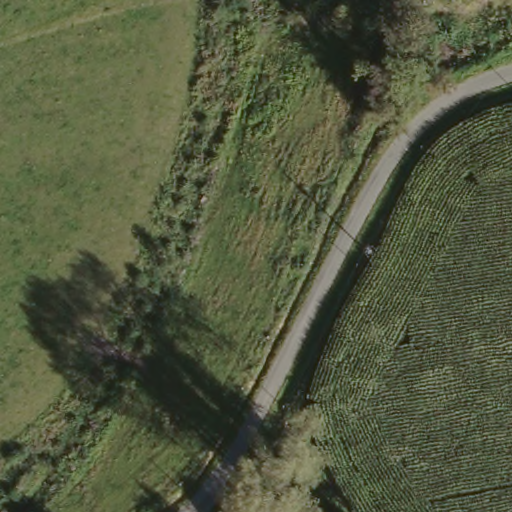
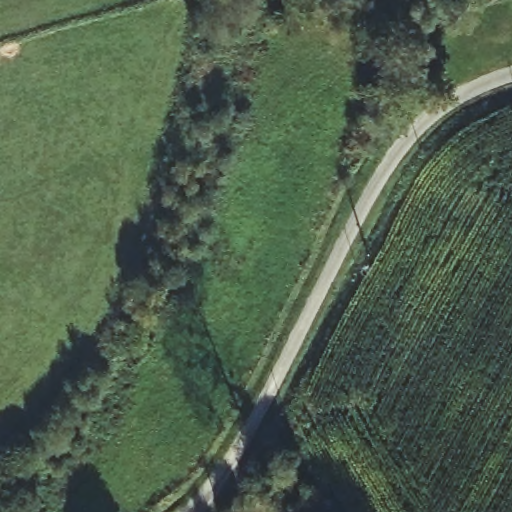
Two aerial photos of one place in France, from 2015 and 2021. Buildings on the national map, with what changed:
unchanged [(228,512),(214,512),(218,499),(231,503),(228,512)]

